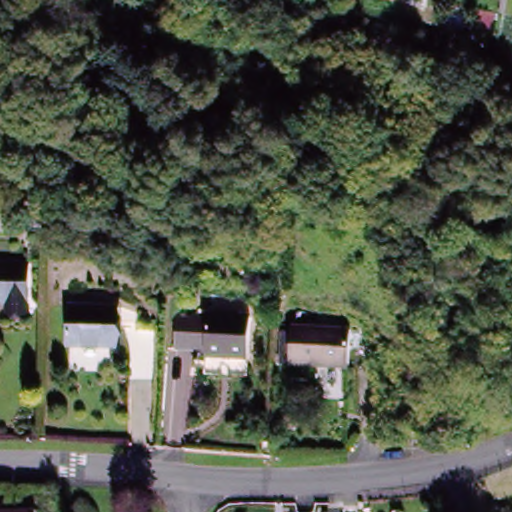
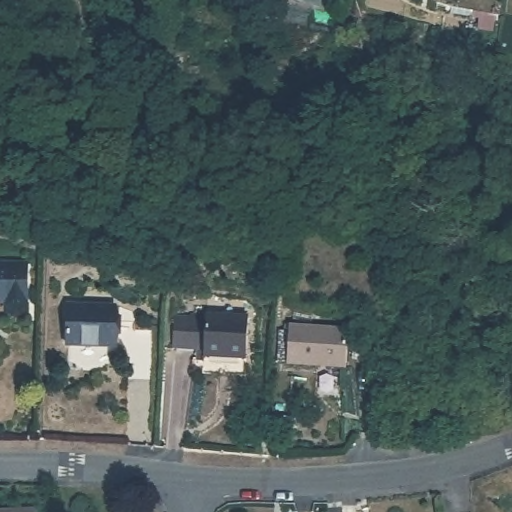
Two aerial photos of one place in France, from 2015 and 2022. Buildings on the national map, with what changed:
unchanged [(6,313),(5,304),(5,298),(0,299),(0,263),(28,263),(28,304),(28,312),(6,313)]
unchanged [(125,309),(123,348),(62,344),(64,305),(125,309)]
unchanged [(241,311),(242,355),(201,356),(200,349),(199,314),(199,311),(241,311)]
unchanged [(200,349),(168,350),(167,315),(199,314),(200,349)]
unchanged [(314,371),(283,371),(284,332),(343,332),(342,364),(342,371),(314,371)]
unchanged [(397,432),(417,427),(422,447),(402,453),(397,432)]
unchanged [(36,508),(37,512),(0,512),(0,509),(36,508)]

